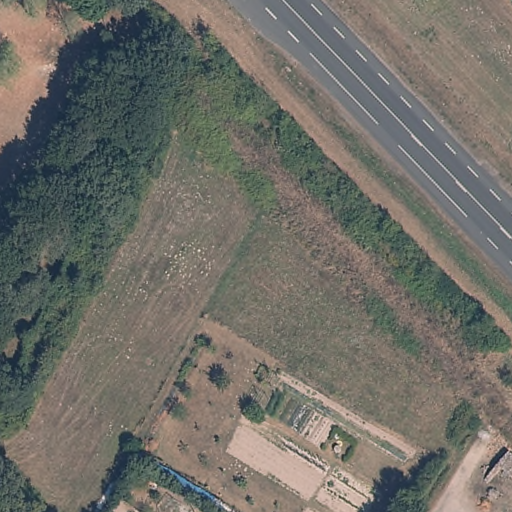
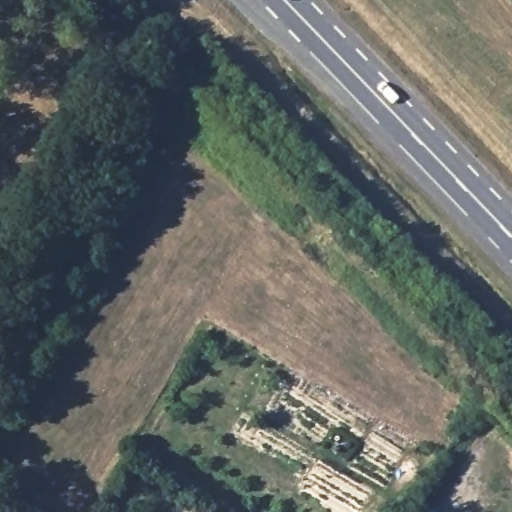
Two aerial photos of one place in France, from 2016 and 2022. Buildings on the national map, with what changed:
[]

